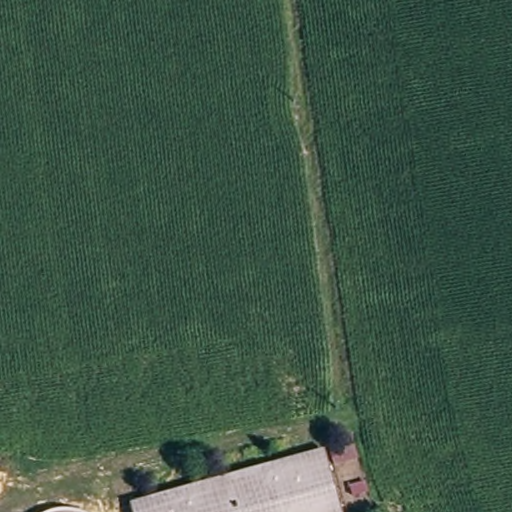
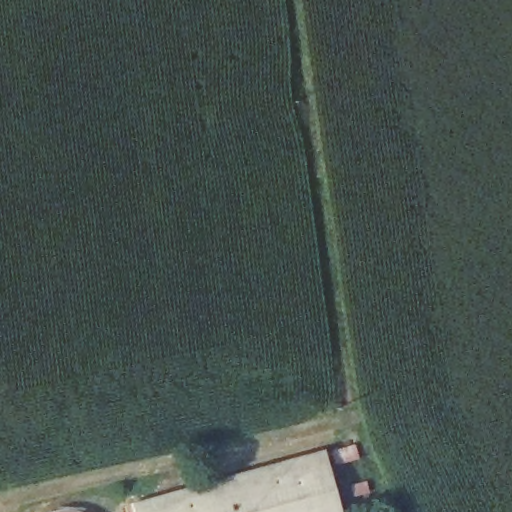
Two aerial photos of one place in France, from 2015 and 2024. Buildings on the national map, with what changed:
unchanged [(132,512),(313,438),(343,512),(132,512)]

